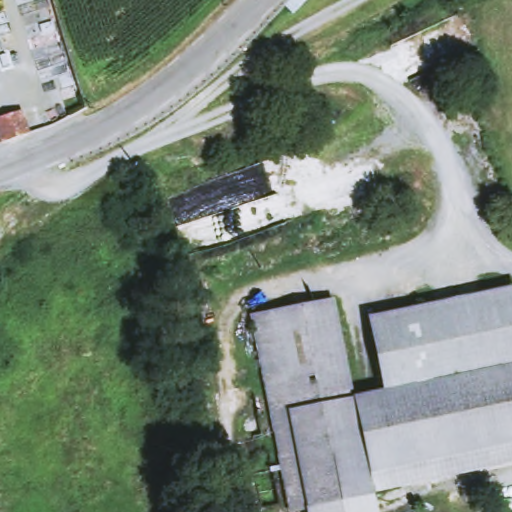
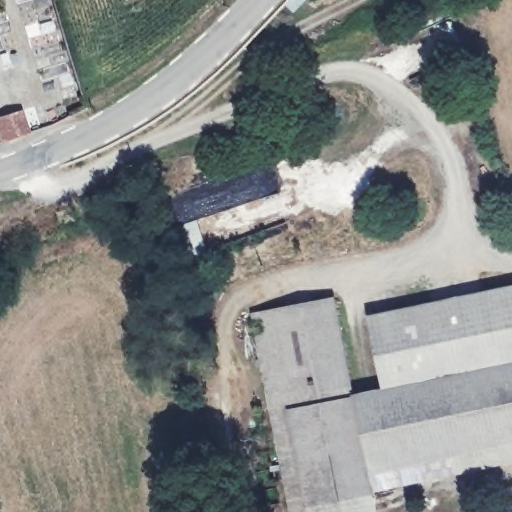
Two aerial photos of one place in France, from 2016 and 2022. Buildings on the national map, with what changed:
unchanged [(0,114),(25,109),(30,134),(0,144),(0,114)]
unchanged [(384,390),(369,317),(512,288),(512,444),(368,473),(372,490),(373,498),(309,512),(293,512),(253,317),(337,299),(356,396),(384,390)]
unchanged [(372,490),(368,473),(512,444),(512,462),(372,490)]
unchanged [(309,512),(373,498),(376,512),(309,512)]

